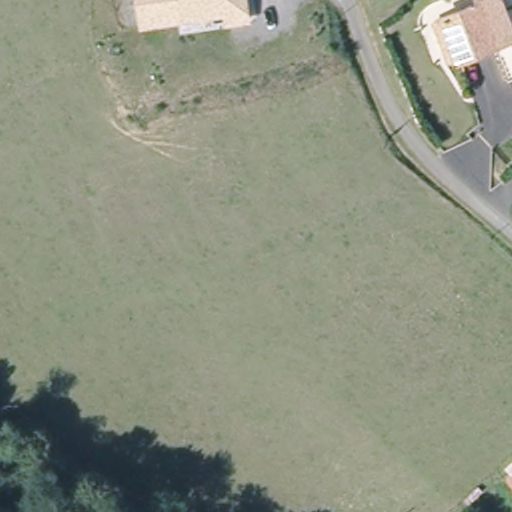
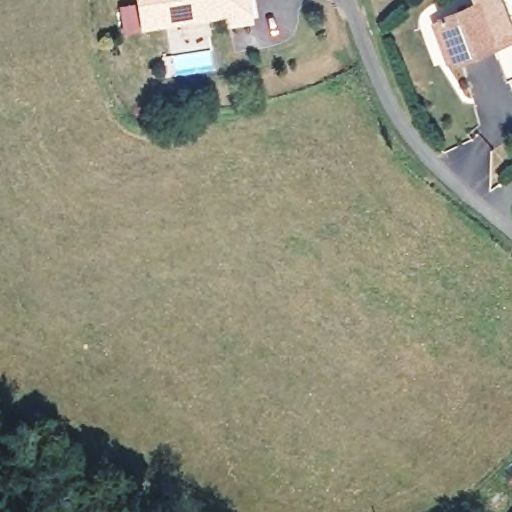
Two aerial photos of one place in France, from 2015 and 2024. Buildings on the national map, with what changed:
unchanged [(232,12),(229,5),(209,8),(211,17),(146,27),(143,0),(249,0),(251,11),(252,20),(233,23),(232,12)]
unchanged [(512,14),(512,74),(506,76),(492,39),(458,52),(457,49),(442,54),(428,17),(443,12),(441,9),(463,0),(501,0),(507,16),(512,14)]

